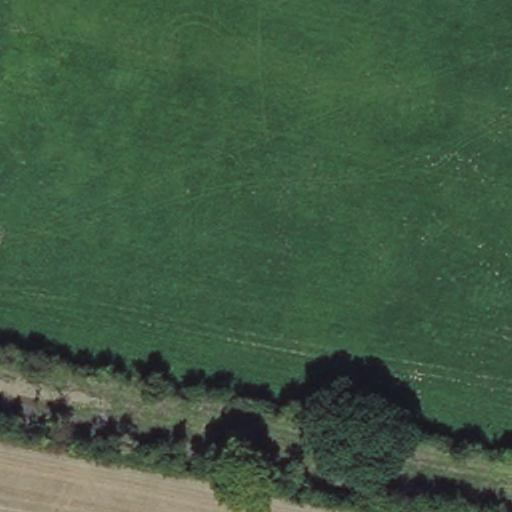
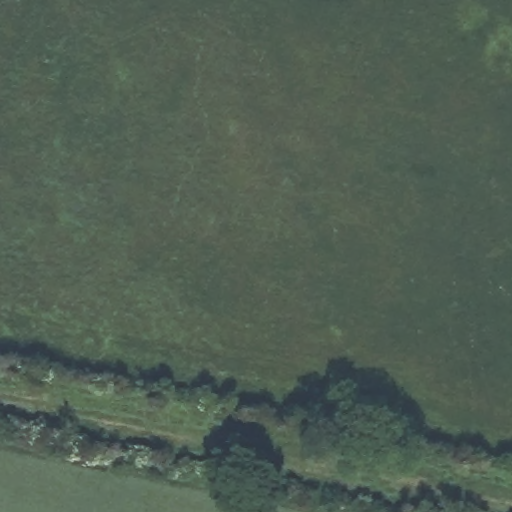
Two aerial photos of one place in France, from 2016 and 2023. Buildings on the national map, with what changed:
[]

